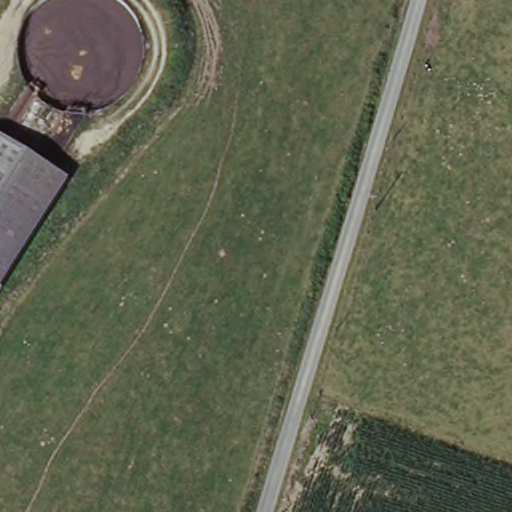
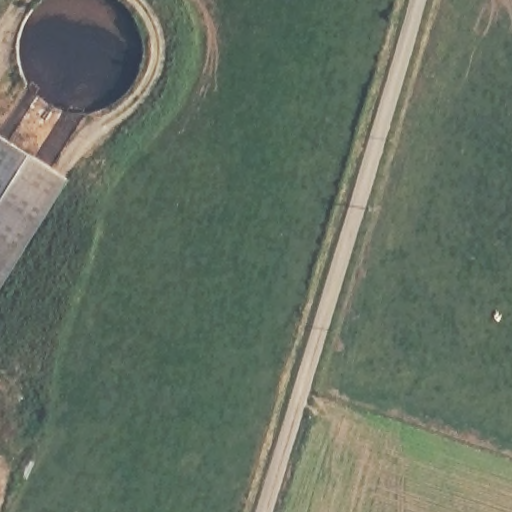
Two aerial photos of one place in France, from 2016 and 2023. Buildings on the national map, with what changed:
unchanged [(69,180),(0,293),(0,140),(69,180)]

